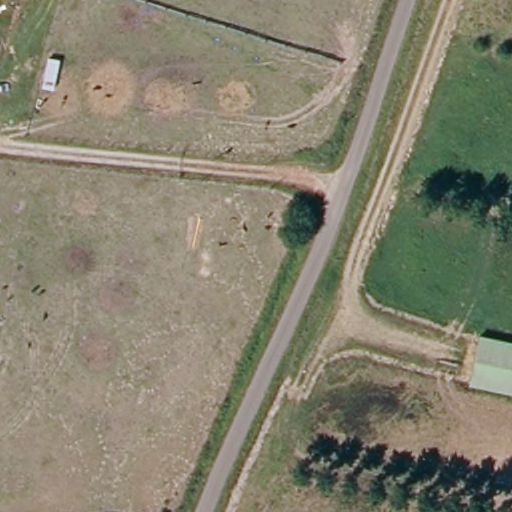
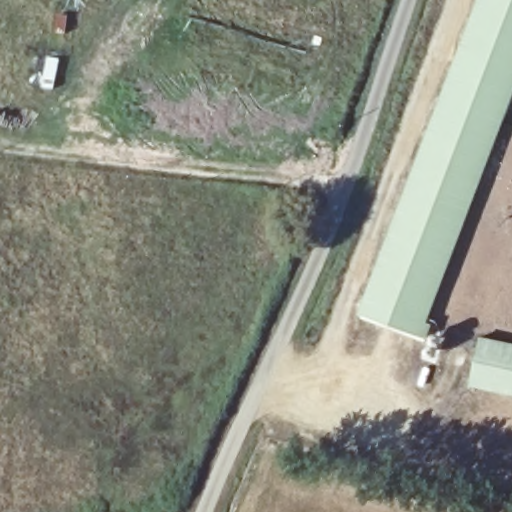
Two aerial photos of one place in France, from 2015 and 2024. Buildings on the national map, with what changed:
new [(478,0),(512,0),(512,100),(428,321),(432,324),(427,337),(359,312),(478,0)]
unchanged [(474,335),(512,343),(512,394),(464,384),(474,335)]

